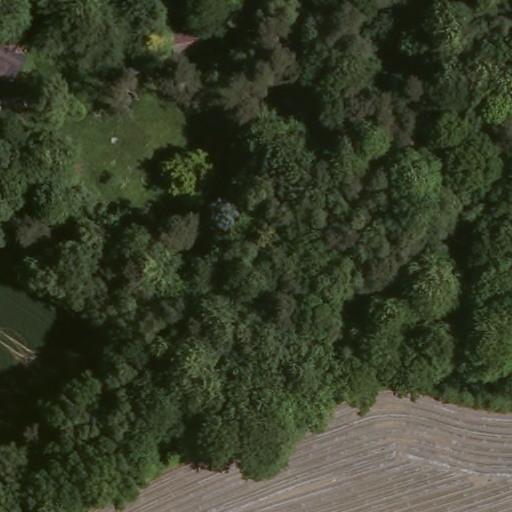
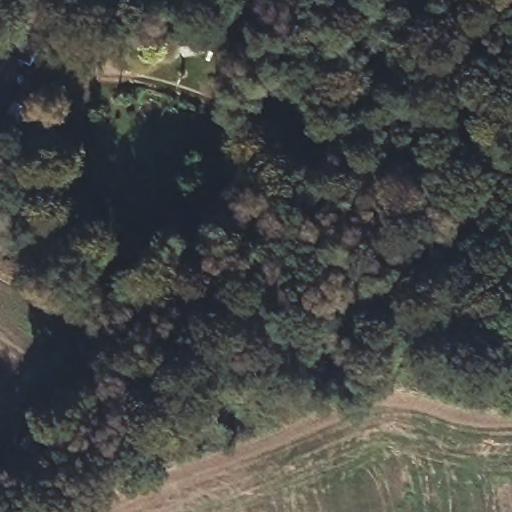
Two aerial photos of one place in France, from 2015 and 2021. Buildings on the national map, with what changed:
unchanged [(198,23),(206,50),(177,57),(170,31),(198,23)]
unchanged [(6,103),(0,100),(0,45),(2,41),(29,55),(6,103)]

